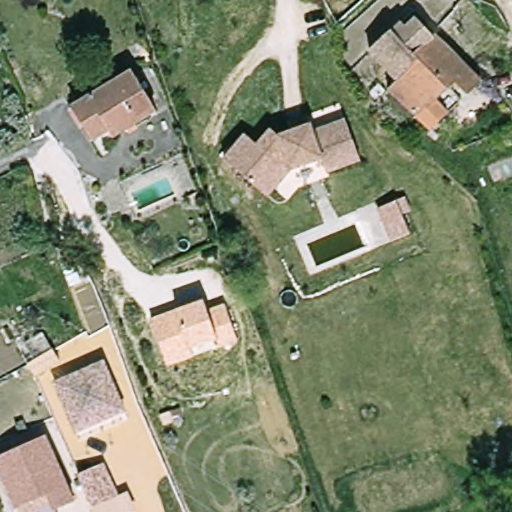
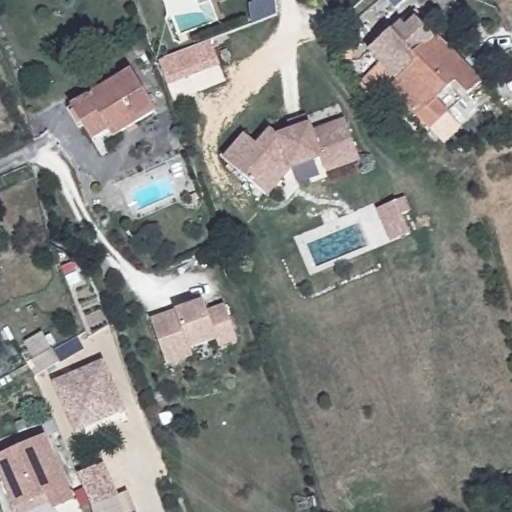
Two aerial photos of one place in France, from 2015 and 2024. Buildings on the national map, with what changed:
new [(251,2),(256,0),(274,0),(276,7),(276,14),(258,20),(251,2)]
unchanged [(434,35),(436,32),(486,82),(473,96),(460,84),(454,90),(465,101),(435,131),(394,91),(403,83),(373,54),(394,34),(404,24),(409,29),(418,19),(434,35)]
new [(214,41),(222,64),(168,85),(160,63),(214,41)]
unchanged [(130,72),(155,111),(113,138),(109,131),(93,141),(73,108),(130,72)]
unchanged [(341,118),(357,159),(323,172),(318,158),(286,170),(270,187),(262,196),(218,159),(239,134),(252,145),(265,129),(274,136),(287,131),(283,121),(302,114),(306,124),(308,130),(341,118)]
unchanged [(187,197),(197,192),(200,200),(191,204),(187,197)]
unchanged [(392,242),(378,209),(407,196),(413,209),(403,215),(410,235),(392,242)]
unchanged [(81,226),(63,237),(58,230),(76,219),(81,226)]
unchanged [(176,309),(203,299),(207,306),(225,305),(237,341),(217,341),(192,351),(168,367),(152,319),(176,309)]
unchanged [(36,377),(28,365),(18,347),(42,332),(52,350),(59,363),(36,377)]
new [(74,337),(82,350),(60,363),(52,350),(74,337)]
unchanged [(72,425),(54,381),(95,364),(116,413),(101,420),(75,431),(72,425)]
unchanged [(169,413),(179,410),(181,417),(172,420),(169,413)]
unchanged [(44,437),(72,501),(48,512),(16,512),(0,476),(0,456),(44,437)]
unchanged [(102,462),(116,495),(91,506),(77,473),(102,462)]

